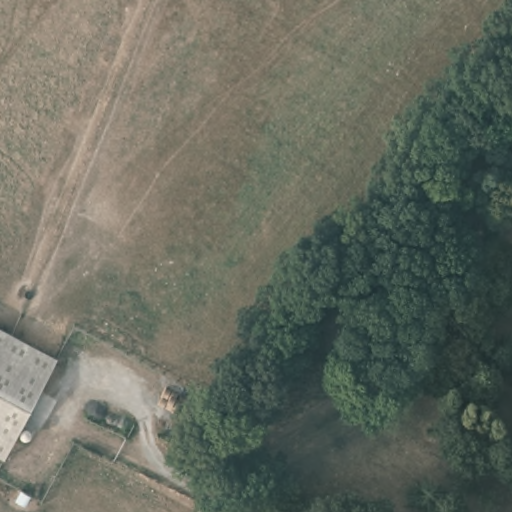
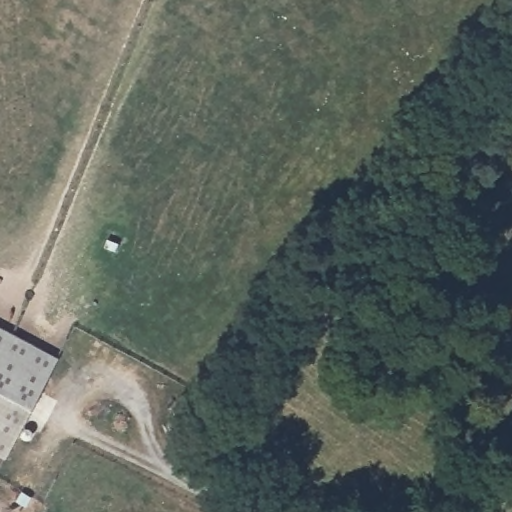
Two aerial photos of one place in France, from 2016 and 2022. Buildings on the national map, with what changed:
unchanged [(0,455),(0,323),(57,355),(4,457),(0,455)]

